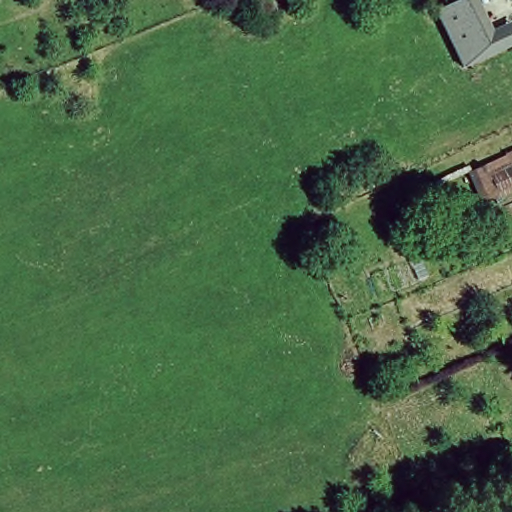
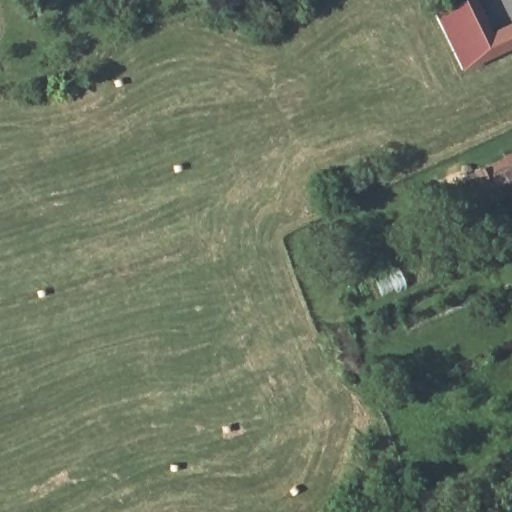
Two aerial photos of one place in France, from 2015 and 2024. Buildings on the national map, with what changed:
unchanged [(479,0),(492,32),(512,24),(512,50),(461,72),(433,16),(467,0),(479,0)]
unchanged [(512,196),(487,207),(471,174),(512,153),(512,196)]

